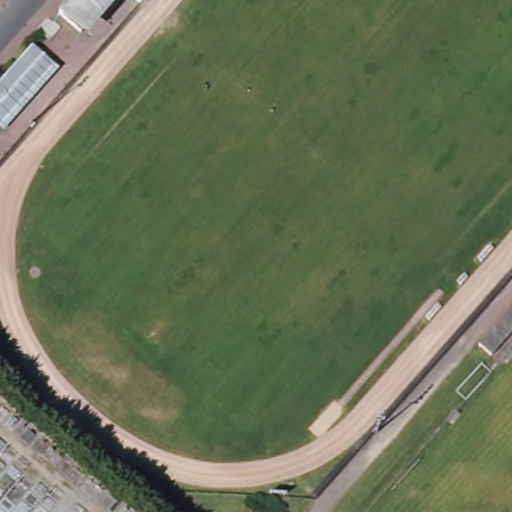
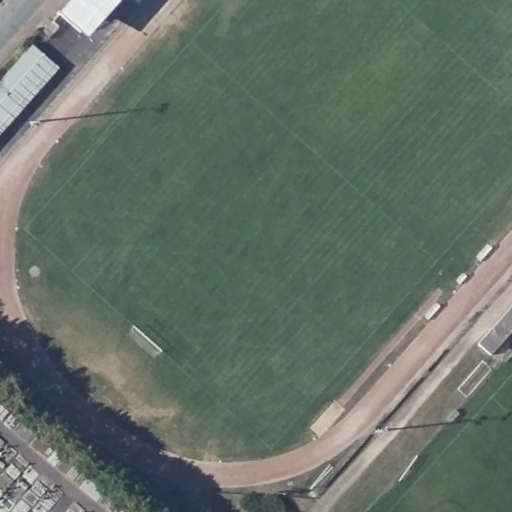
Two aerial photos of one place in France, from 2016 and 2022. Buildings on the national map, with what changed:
unchanged [(64,19),(80,0),(119,0),(86,38),(64,19)]
unchanged [(0,127),(0,82),(33,45),(55,65),(0,127)]
unchanged [(492,356),(478,344),(512,307),(512,332),(492,356)]

